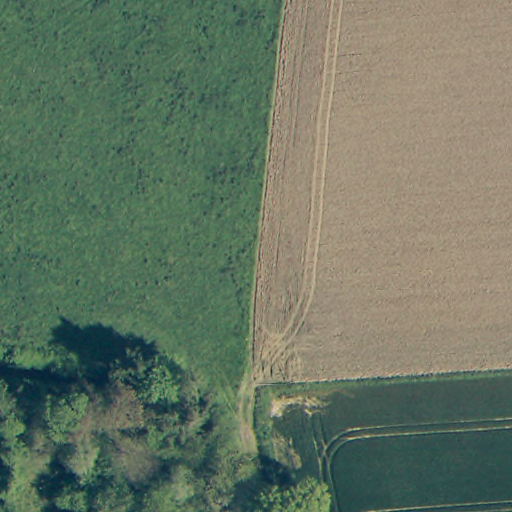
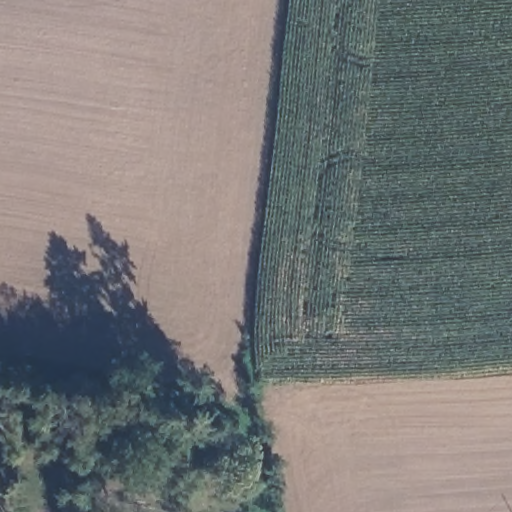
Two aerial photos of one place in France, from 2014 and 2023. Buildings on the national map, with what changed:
unchanged [(103,505),(105,512),(83,512),(83,511),(103,505)]

